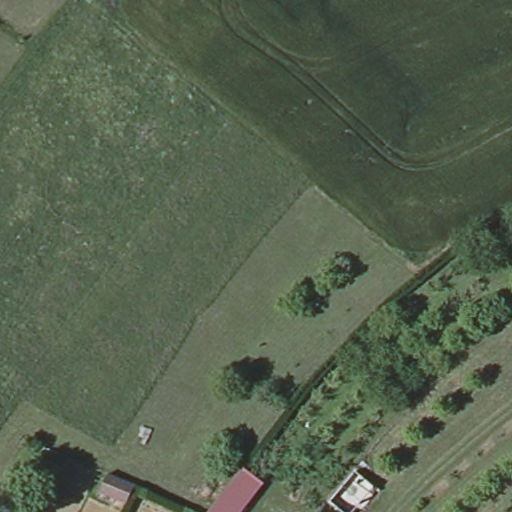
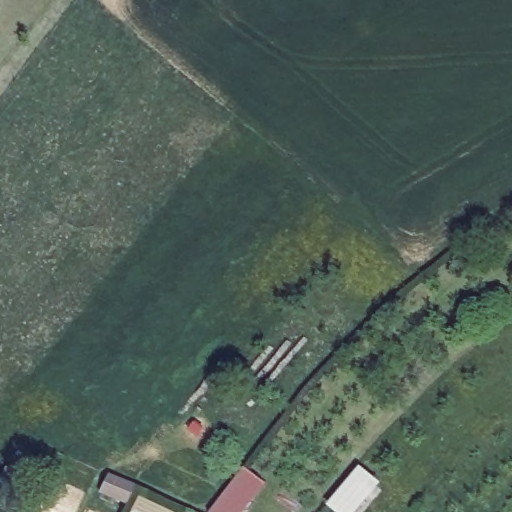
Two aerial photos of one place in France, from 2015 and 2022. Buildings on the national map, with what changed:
unchanged [(243,468),(264,483),(241,512),(206,512),(243,468)]
unchanged [(134,486),(126,505),(99,493),(106,475),(134,486)]

